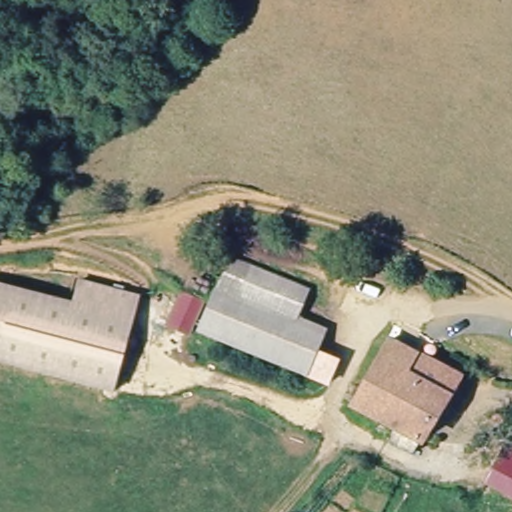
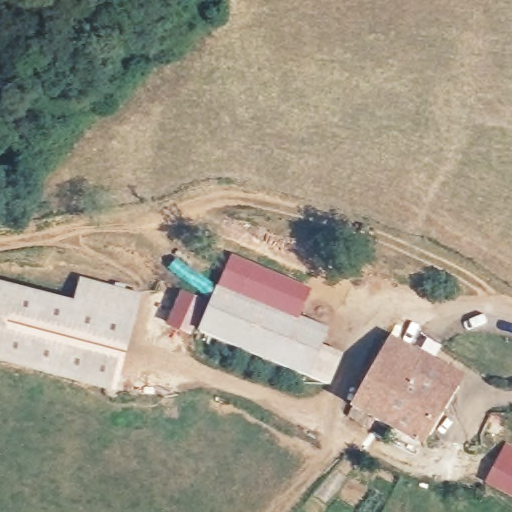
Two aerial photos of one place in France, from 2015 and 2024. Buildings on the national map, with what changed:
unchanged [(305,293),(293,323),(216,289),(228,261),(305,293)]
unchanged [(76,302),(83,277),(142,292),(140,299),(135,316),(118,385),(0,355),(0,282),(76,302)]
unchanged [(293,323),(323,336),(302,384),(194,337),(216,289),(293,323)]
unchanged [(198,306),(186,333),(184,338),(180,336),(161,328),(169,309),(175,295),(198,306)]
unchanged [(414,461),(390,448),(399,432),(356,409),(362,396),(393,341),(400,328),(420,340),(413,352),(461,377),(433,428),(414,461)]
unchanged [(512,500),(480,482),(501,443),(512,449),(512,500)]

